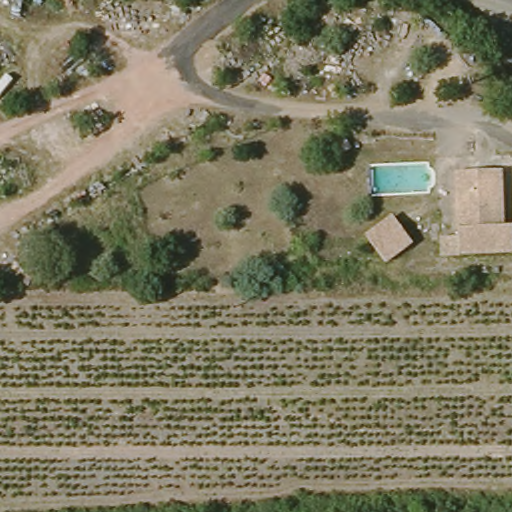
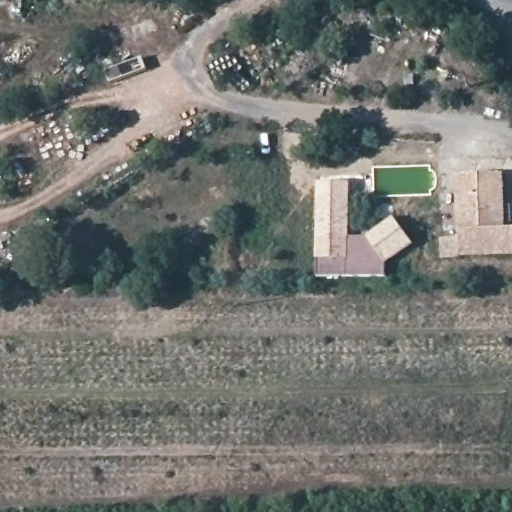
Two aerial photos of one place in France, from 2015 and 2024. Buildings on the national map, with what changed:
unchanged [(447,235),(461,235),(463,170),(500,171),(503,173),(502,227),(512,228),(512,251),(447,251),(447,235)]
new [(414,244),(386,263),(386,279),(318,280),(318,259),(316,259),(316,182),(350,182),(349,237),(367,237),(393,217),(414,244)]
demolished [(387,255),(367,227),(393,209),(412,237),(387,255)]

